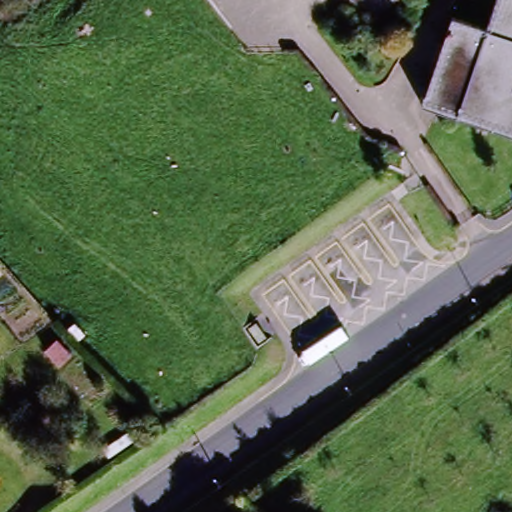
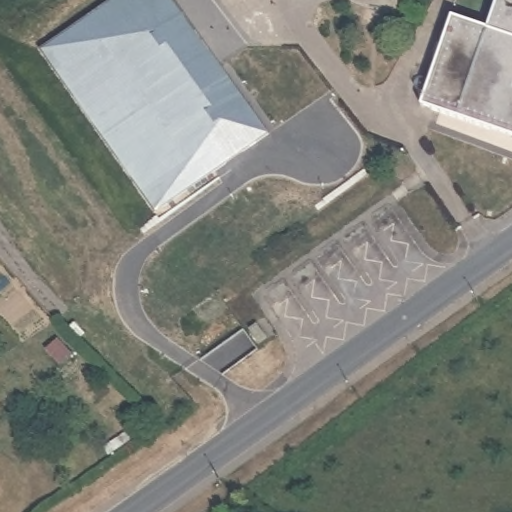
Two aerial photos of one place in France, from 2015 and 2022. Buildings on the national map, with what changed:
new [(270,134),(157,215),(40,51),(114,0),(172,0),(270,134)]
unchanged [(452,16),(487,29),(497,0),(512,0),(512,135),(422,104),(452,16)]

